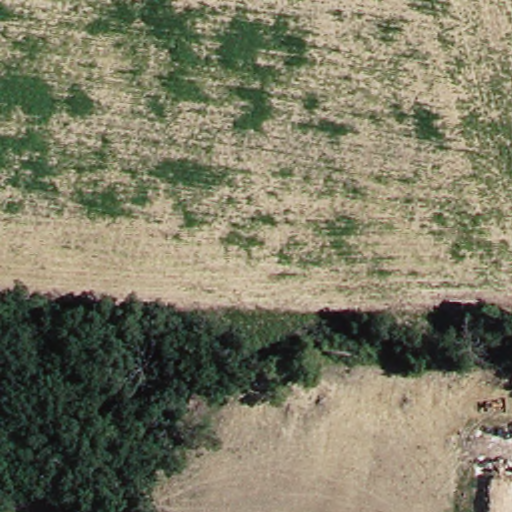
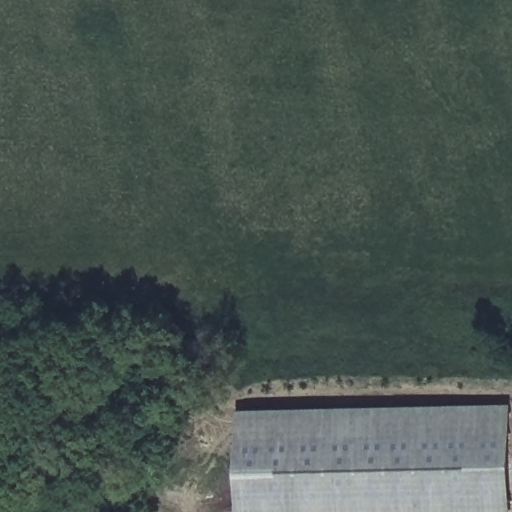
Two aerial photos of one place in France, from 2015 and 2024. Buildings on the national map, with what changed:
new [(511,404),(512,451),(512,512),(239,512),(239,410),(511,404)]
demolished [(472,442),(474,413),(512,415),(512,446),(472,442)]

